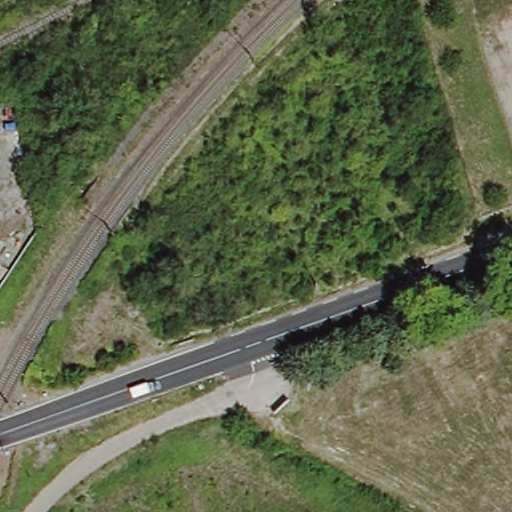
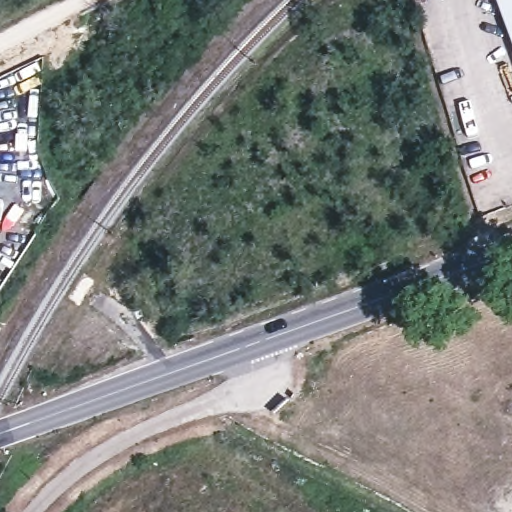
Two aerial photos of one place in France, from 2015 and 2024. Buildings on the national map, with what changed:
new [(512,45),(495,0),(512,0),(512,45)]

